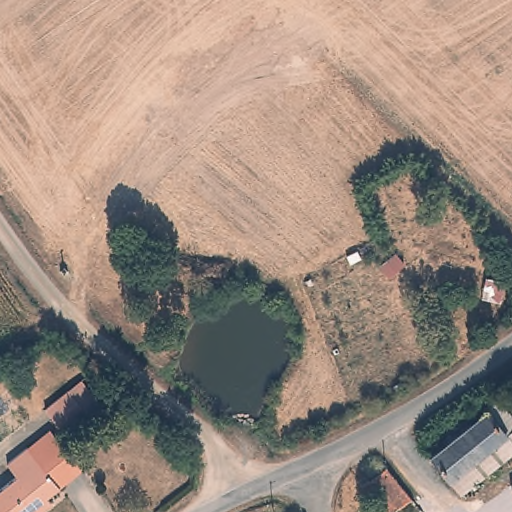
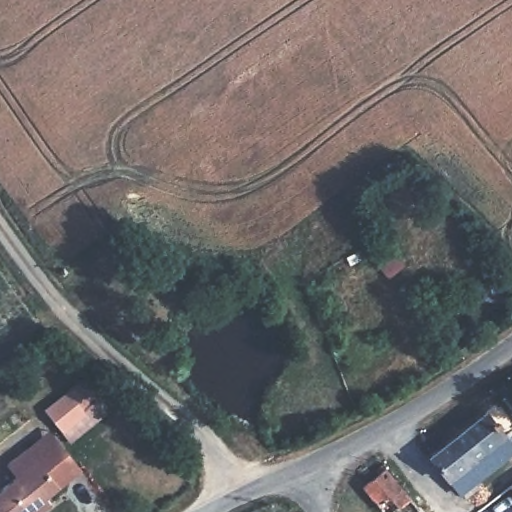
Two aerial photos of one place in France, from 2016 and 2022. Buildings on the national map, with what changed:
unchanged [(43,412),(67,393),(69,397),(83,387),(95,403),(82,413),(84,417),(60,435),(43,412)]
unchanged [(512,424),(512,432),(499,442),(510,455),(458,497),(429,456),(497,406),(512,424)]
unchanged [(46,433),(78,474),(55,491),(24,450),(46,433)]
unchanged [(4,466),(24,450),(55,491),(43,501),(47,507),(40,512),(0,512),(0,489),(14,478),(4,466)]
unchanged [(398,512),(376,512),(359,490),(384,472),(408,505),(398,512)]
unchanged [(511,485),(512,484),(512,487),(511,485)]

